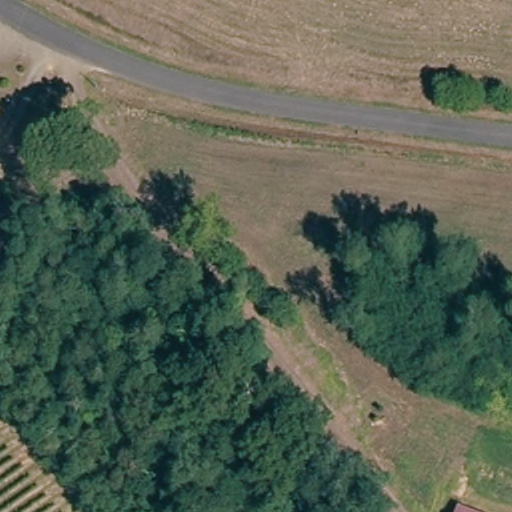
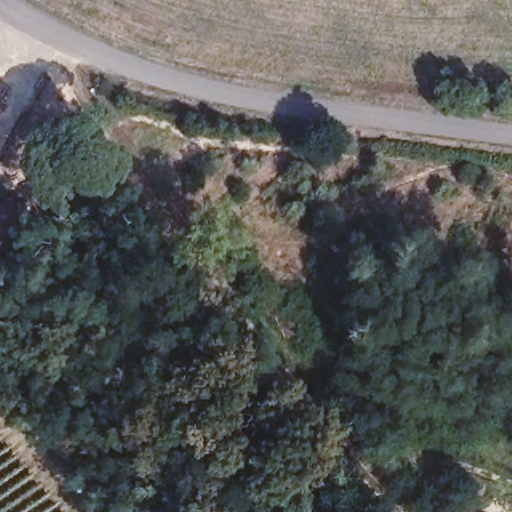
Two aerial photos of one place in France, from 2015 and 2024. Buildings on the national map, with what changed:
unchanged [(0,194),(17,216),(0,230),(0,194)]
unchanged [(458,510),(464,512),(457,512),(458,510)]

